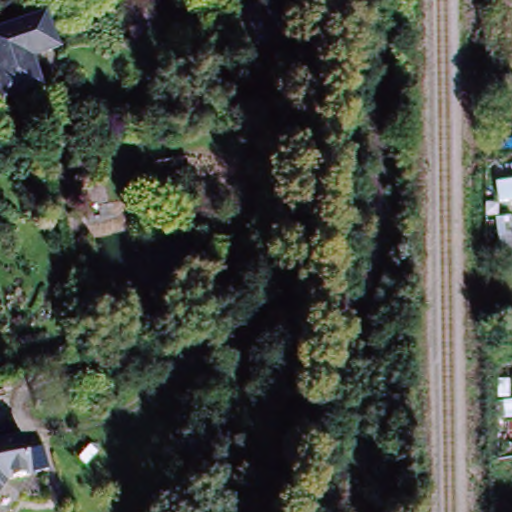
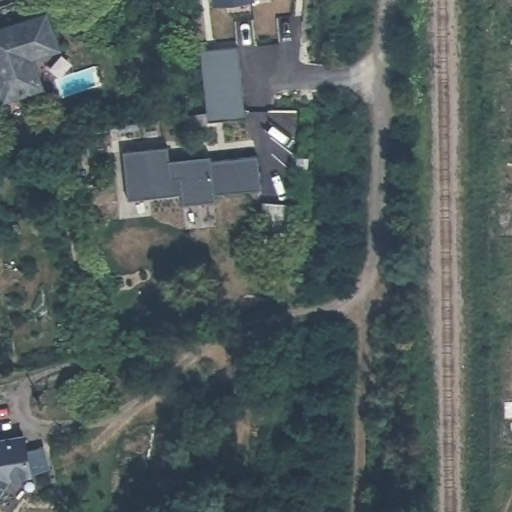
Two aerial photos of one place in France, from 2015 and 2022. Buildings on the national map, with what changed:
new [(214,0),(236,0),(214,2),(214,0)]
demolished [(287,6),(288,44),(241,46),(244,8),(287,6)]
unchanged [(33,23),(31,19),(50,13),(53,22),(56,31),(62,50),(46,55),(31,60),(40,86),(28,90),(29,94),(21,96),(19,93),(8,96),(6,91),(0,93),(0,34),(33,23)]
new [(236,48),(242,119),(205,122),(199,51),(236,48)]
new [(260,191),(213,195),(214,202),(182,205),(181,195),(127,200),(122,151),(167,147),(168,161),(209,156),(210,162),(257,157),(260,191)]
demolished [(512,419),(499,420),(497,404),(512,402),(512,419)]
unchanged [(20,436),(26,435),(32,474),(25,476),(11,478),(0,492),(0,439),(20,436)]

